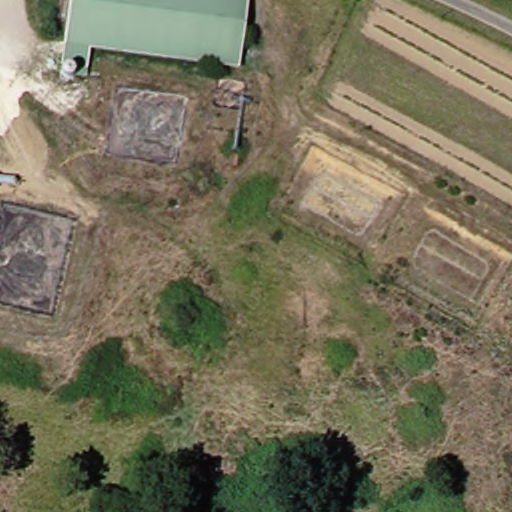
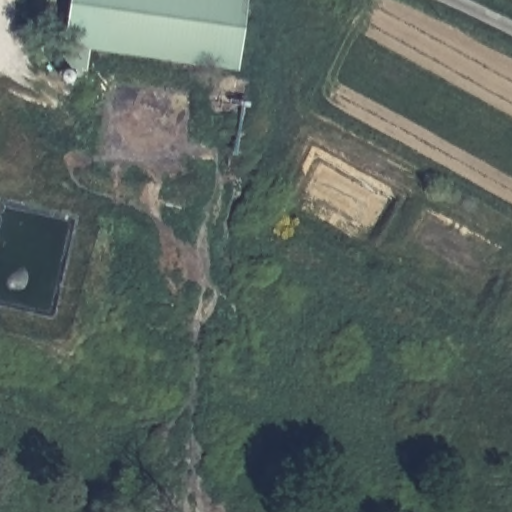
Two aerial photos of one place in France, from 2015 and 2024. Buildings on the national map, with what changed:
unchanged [(239,67),(90,52),(89,72),(58,70),(65,0),(245,0),(239,67)]

